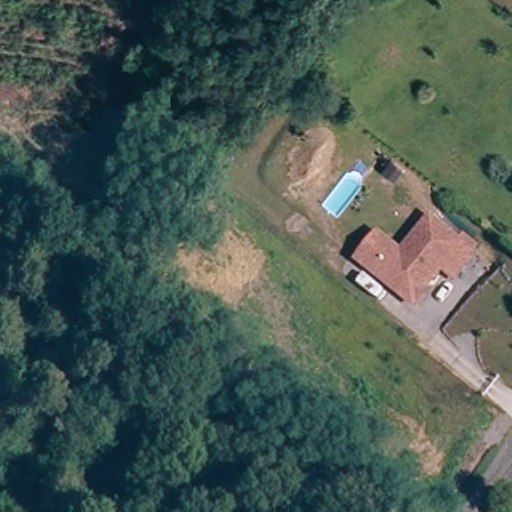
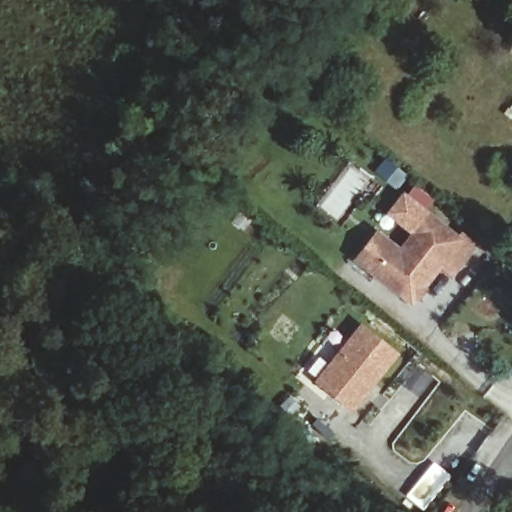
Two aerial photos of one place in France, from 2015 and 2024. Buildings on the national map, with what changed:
unchanged [(425,216),(456,240),(468,249),(448,276),(436,267),(409,301),(369,270),(353,258),(372,233),(388,245),(397,252),(425,216)]
new [(400,355),(352,415),(313,383),(361,324),(400,355)]

